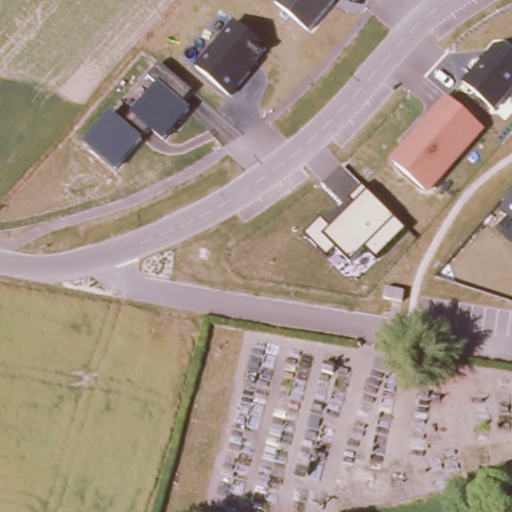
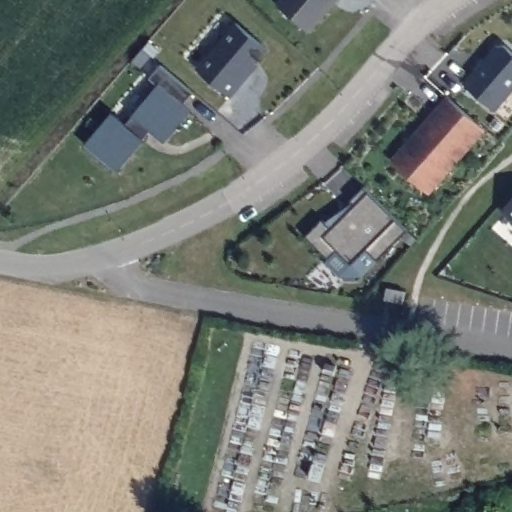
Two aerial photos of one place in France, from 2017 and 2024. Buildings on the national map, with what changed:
unchanged [(281,0),(337,0),(309,33),(277,6),(281,0)]
unchanged [(235,23),(269,50),(230,97),(196,69),(235,23)]
unchanged [(512,54),(512,91),(495,111),(464,84),(494,47),(505,47),(512,54)]
unchanged [(85,146),(112,115),(125,127),(132,116),(159,87),(150,79),(160,66),(194,94),(184,106),(191,112),(165,144),(150,132),(143,141),(117,172),(85,146)]
unchanged [(487,130),(429,196),(390,163),(445,101),(487,130)]
unchanged [(377,260),(367,250),(352,265),(337,251),(327,260),(305,236),(322,220),(325,223),(352,202),(350,200),(364,187),(407,231),(377,260)]
unchanged [(512,199),(512,223),(500,212),(512,199)]

